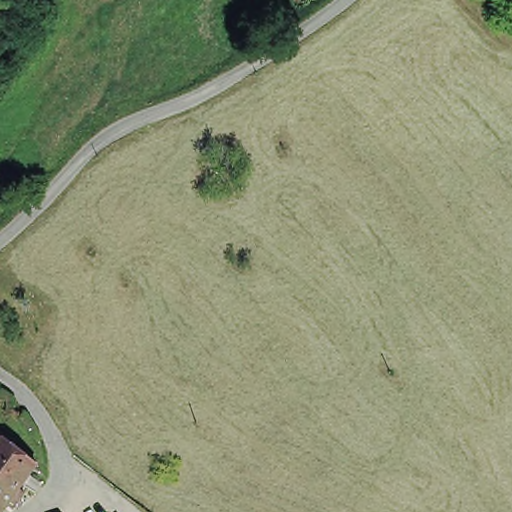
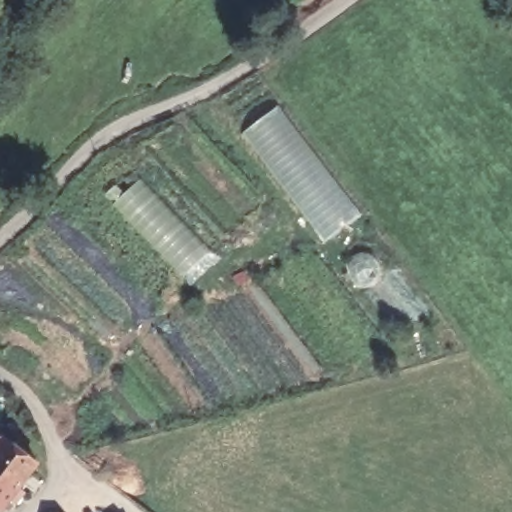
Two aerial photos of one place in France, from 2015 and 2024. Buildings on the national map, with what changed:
new [(326,241),(244,132),(281,106),(360,213),(326,241)]
new [(132,170),(213,252),(183,283),(104,196),(132,170)]
unchanged [(4,442),(36,466),(18,491),(23,495),(15,508),(8,503),(2,512),(0,512),(0,443),(3,445),(4,442)]

